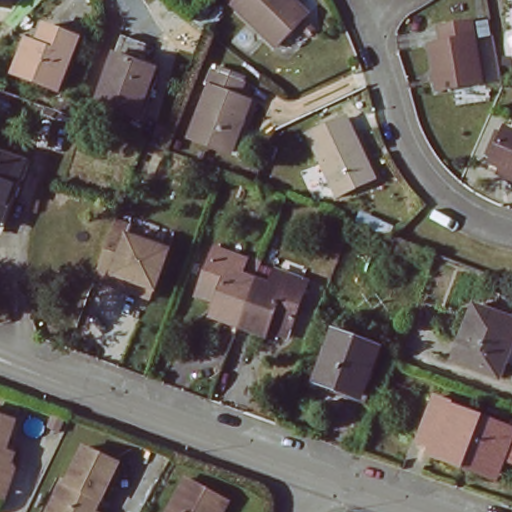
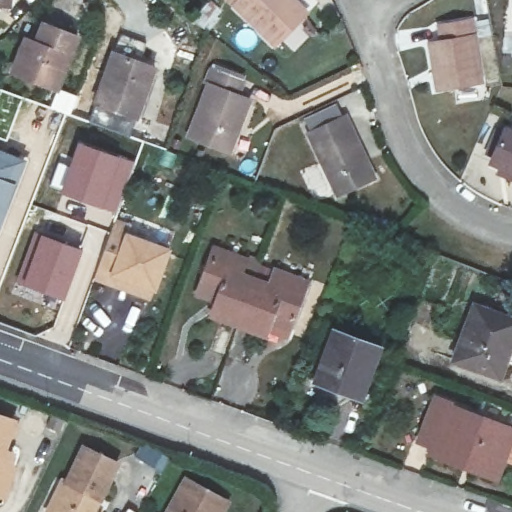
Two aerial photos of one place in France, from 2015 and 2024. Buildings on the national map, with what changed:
unchanged [(10,10),(0,9),(0,0),(11,0),(10,10)]
unchanged [(305,13),(275,45),(229,0),(291,0),(305,13)]
unchanged [(435,42),(445,41),(442,24),(475,19),(484,82),(442,89),(435,42)]
unchanged [(26,39),(35,43),(45,26),(77,44),(51,92),(9,70),(26,39)]
unchanged [(111,53),(154,68),(135,118),(93,102),(111,53)]
unchanged [(217,70),(245,79),(239,96),(252,99),(233,152),(191,137),(217,70)]
unchanged [(344,116),(371,178),(336,194),(308,132),(344,116)]
unchanged [(487,158),(501,125),(512,130),(512,176),(497,169),(500,164),(487,158)]
new [(58,161),(68,165),(78,141),(136,161),(116,214),(60,192),(60,189),(49,185),(58,161)]
unchanged [(25,162),(10,202),(0,227),(0,153),(25,162)]
unchanged [(88,271),(90,269),(92,261),(110,214),(126,220),(122,228),(163,244),(148,282),(145,292),(88,271)]
new [(35,231),(84,248),(65,299),(15,281),(35,231)]
unchanged [(239,323),(212,313),(218,298),(199,291),(216,245),(248,257),(242,272),(256,278),(239,323)]
unchanged [(256,278),(270,283),(276,267),(310,280),(292,327),(272,319),(266,334),(239,323),(256,278)]
unchanged [(512,347),(500,378),(452,359),(475,305),(512,320),(512,347)]
unchanged [(335,334),(380,350),(362,396),(317,381),(335,334)]
unchanged [(460,466),(425,453),(428,446),(413,440),(431,395),(448,400),(446,404),(510,428),(496,468),(492,478),(460,466)]
unchanged [(0,499),(0,418),(13,422),(3,452),(10,455),(7,465),(10,475),(5,491),(2,499),(0,499)]
unchanged [(65,480),(69,482),(86,448),(120,464),(98,508),(106,512),(52,512),(50,511),(65,480)]
unchanged [(231,502),(226,512),(170,512),(187,480),(231,502)]

